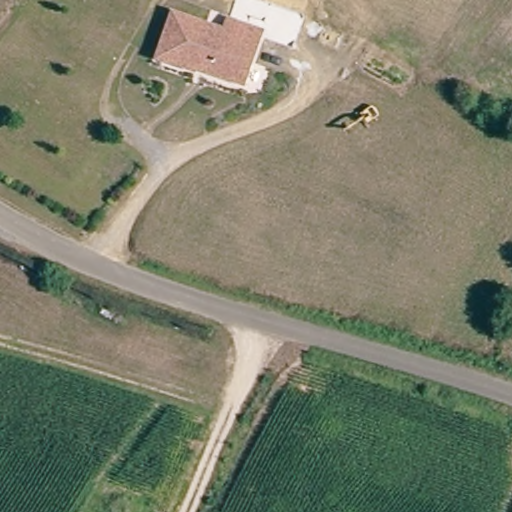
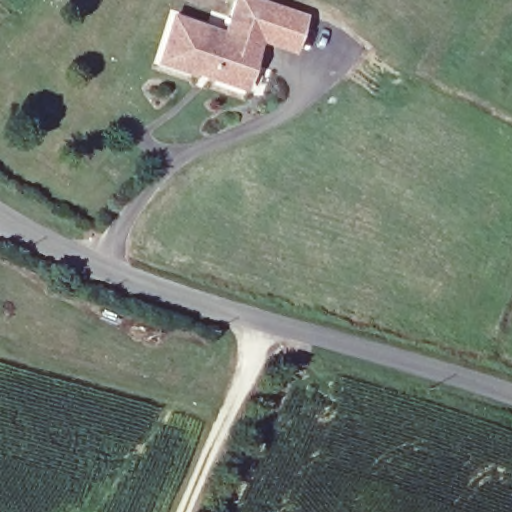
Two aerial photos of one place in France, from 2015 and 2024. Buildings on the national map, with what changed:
new [(246,27),(229,20),(235,0),(268,0),(309,14),(296,51),(257,39),(260,33),(246,27)]
unchanged [(246,27),(260,33),(247,64),(238,85),(190,65),(189,69),(155,54),(173,10),(205,24),(224,31),(229,20),(246,27)]

